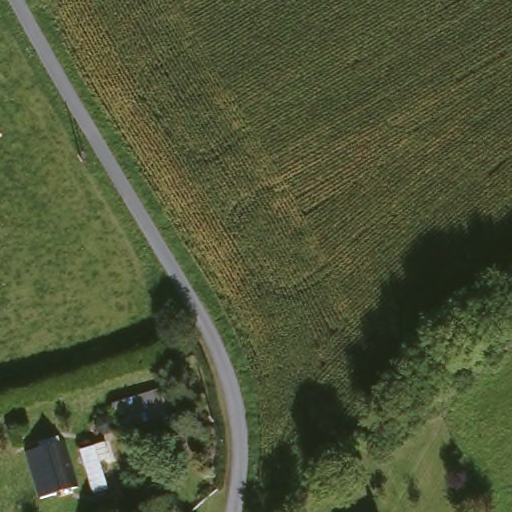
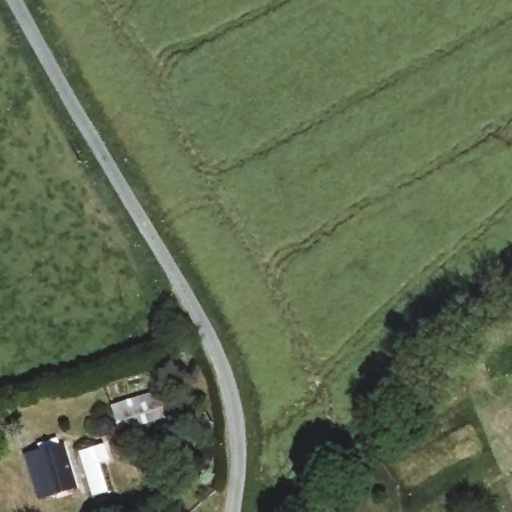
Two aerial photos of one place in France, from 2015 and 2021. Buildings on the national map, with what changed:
unchanged [(170,387),(176,408),(126,423),(120,402),(170,387)]
unchanged [(100,443),(106,462),(98,465),(106,497),(85,503),(69,453),(100,443)]
unchanged [(11,458),(54,445),(67,487),(26,501),(11,458)]

